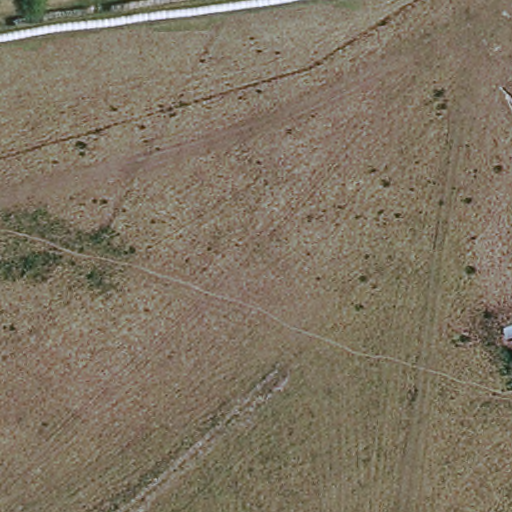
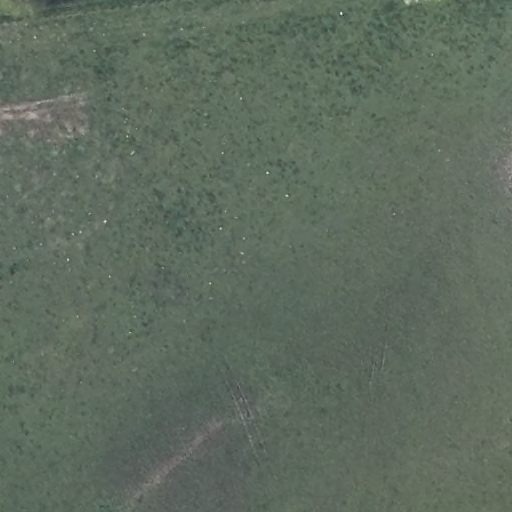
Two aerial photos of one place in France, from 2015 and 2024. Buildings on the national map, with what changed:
[]

